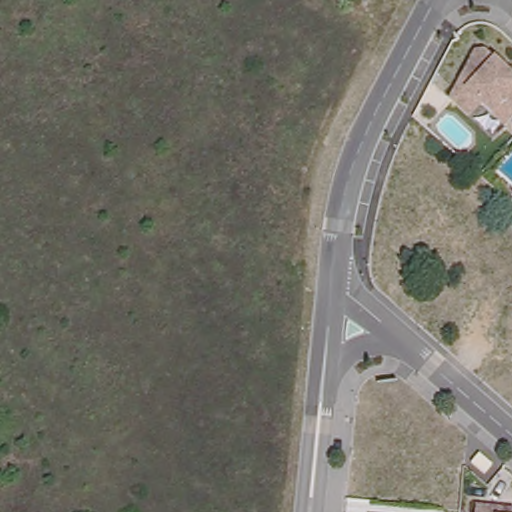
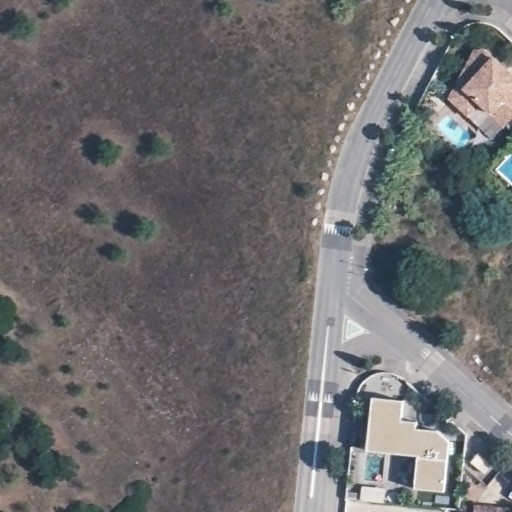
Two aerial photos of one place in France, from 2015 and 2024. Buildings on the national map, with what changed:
unchanged [(476,115),(458,98),(483,51),(492,47),(512,66),(512,125),(488,102),(476,115)]
new [(371,395),(402,398),(401,418),(416,419),(415,426),(437,428),(448,438),(444,489),(414,486),(418,453),(367,449),(371,395)]
unchanged [(465,468),(472,459),(486,471),(479,479),(465,468)]
new [(363,501),(364,487),(387,490),(386,504),(363,501)]
unchanged [(512,504),(512,512),(475,512),(476,500),(512,504)]

